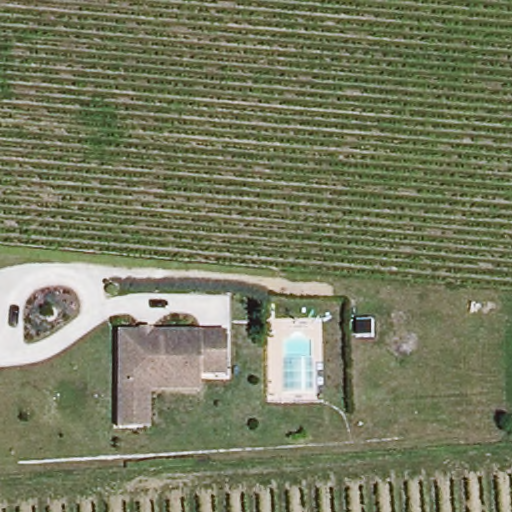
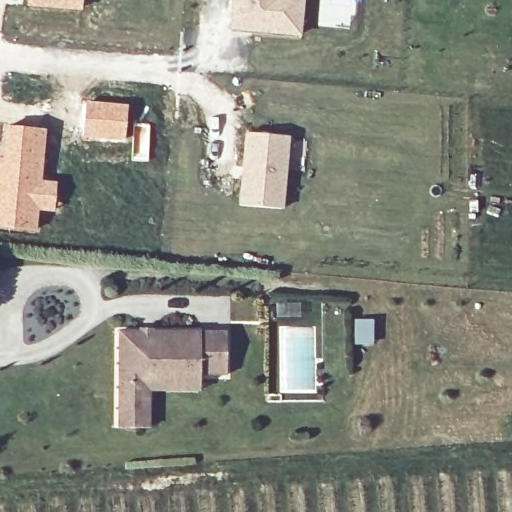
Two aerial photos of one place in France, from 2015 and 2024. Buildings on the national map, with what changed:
new [(26,0),(83,0),(82,11),(25,6),(26,0)]
new [(298,35),(230,29),(233,0),(302,0),(298,35)]
new [(85,100),(128,104),(125,141),(81,139),(85,100)]
new [(47,128),(43,179),(58,181),(55,212),(39,211),(37,231),(0,228),(0,123),(47,128)]
new [(133,123),(150,124),(148,161),(131,160),(133,123)]
new [(245,134),(286,138),(280,210),(239,206),(245,134)]
unchanged [(144,390),(143,429),(138,429),(114,429),(114,332),(221,333),(222,376),(194,376),(195,390),(144,390)]

